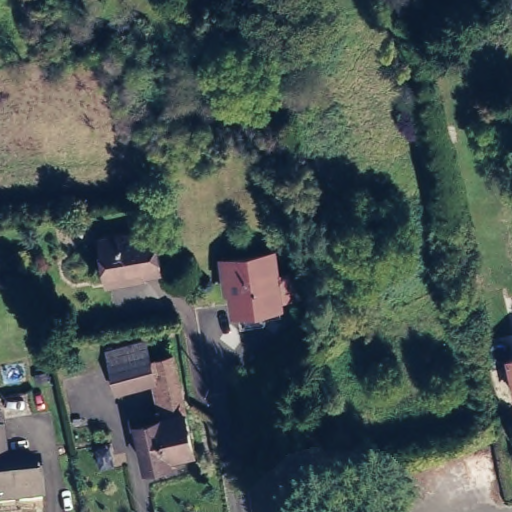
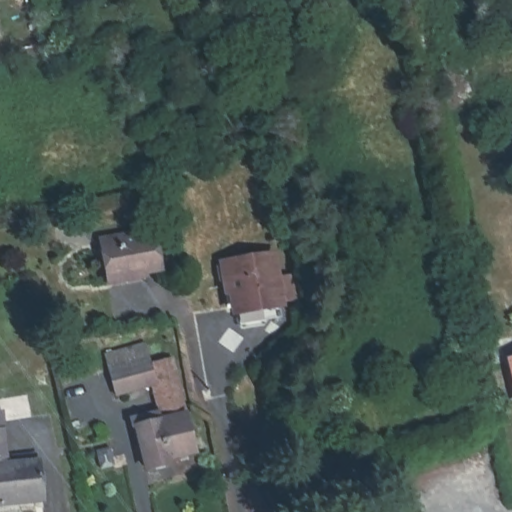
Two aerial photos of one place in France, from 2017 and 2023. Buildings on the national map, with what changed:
unchanged [(101,276),(95,240),(148,230),(156,270),(138,273),(140,279),(103,286),(101,276)]
unchanged [(271,314),(270,306),(246,310),(243,289),(235,290),(231,265),(281,257),(288,303),(289,311),(271,314)]
unchanged [(166,468),(141,474),(131,432),(129,433),(127,425),(145,420),(147,427),(156,424),(146,390),(109,399),(105,386),(106,385),(100,359),(135,350),(138,362),(141,361),(143,369),(165,363),(188,456),(171,461),(172,466),(166,468)]
unchanged [(504,365),(512,364),(512,395),(504,365)]
unchanged [(112,452),(108,438),(119,435),(123,449),(112,452)]
unchanged [(7,462),(29,459),(30,466),(33,466),(38,505),(14,507),(15,512),(0,512),(0,470),(8,469),(7,462)]

